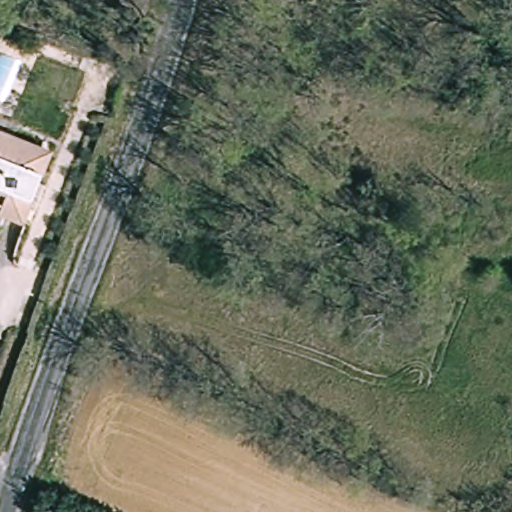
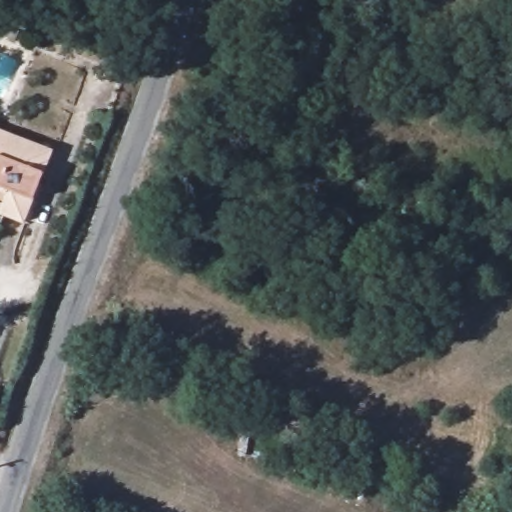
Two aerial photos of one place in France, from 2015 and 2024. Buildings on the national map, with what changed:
unchanged [(50,149),(45,161),(21,222),(0,215),(0,131),(36,144),(50,149)]

